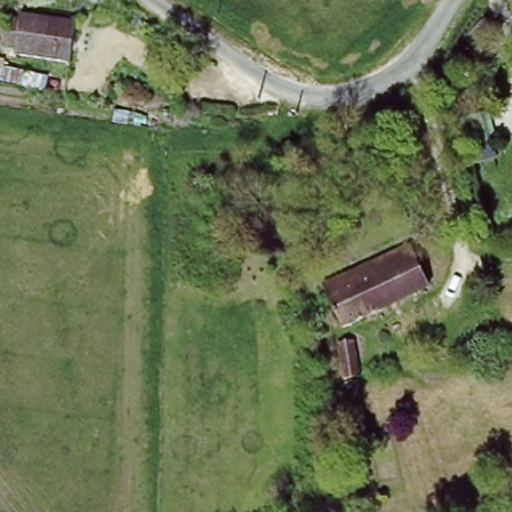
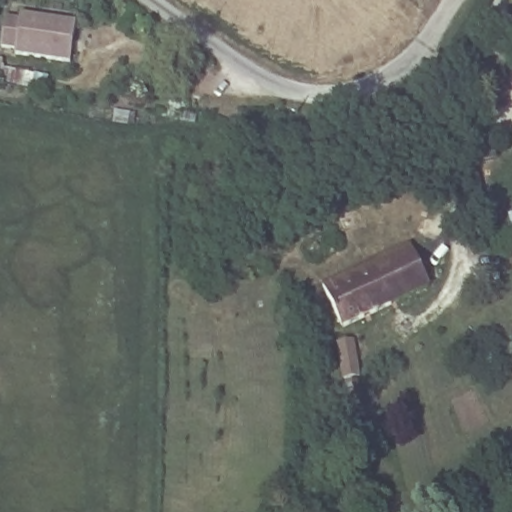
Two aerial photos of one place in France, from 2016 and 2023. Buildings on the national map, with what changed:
unchanged [(74,21),(68,62),(19,56),(14,50),(3,49),(8,18),(21,20),(25,14),(74,21)]
unchanged [(371,262),(378,276),(412,259),(425,287),(341,327),(340,322),(331,325),(325,313),(335,309),(323,284),(371,262)]
unchanged [(355,338),(363,372),(346,376),(338,342),(355,338)]
unchanged [(360,379),(367,414),(355,417),(348,382),(360,379)]

